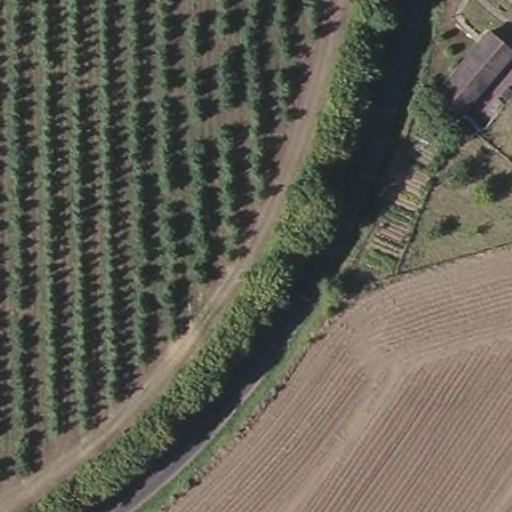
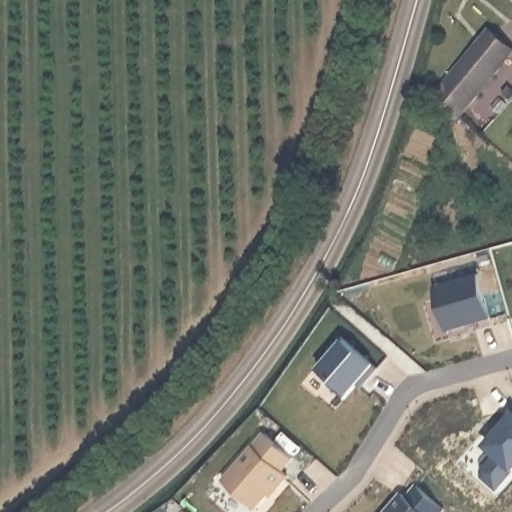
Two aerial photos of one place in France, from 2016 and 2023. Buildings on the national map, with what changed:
unchanged [(486,29),(508,50),(454,116),(428,94),(486,29)]
new [(476,279),(489,324),(445,337),(432,292),(476,279)]
new [(317,373),(334,353),(330,350),(341,338),(345,343),(373,367),(347,398),(317,373)]
new [(512,413),(512,419),(510,416),(512,413)]
new [(480,481),(479,476),(493,461),(485,453),(485,447),(512,419),(512,474),(493,495),(480,481)]
new [(293,459),(284,472),(287,476),(255,510),(223,483),(265,433),(293,459)]
new [(406,498),(415,486),(443,511),(443,512),(384,512),(401,493),(406,498)]

